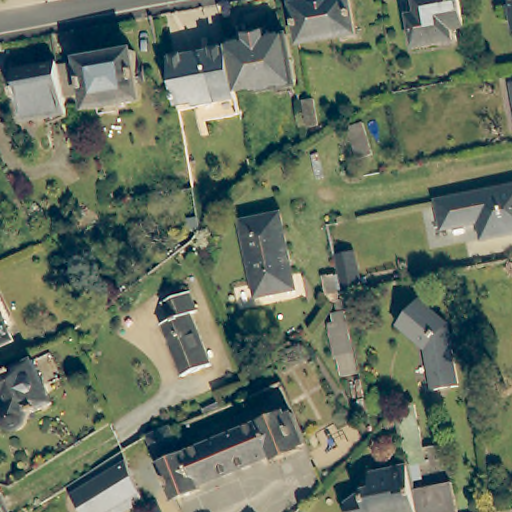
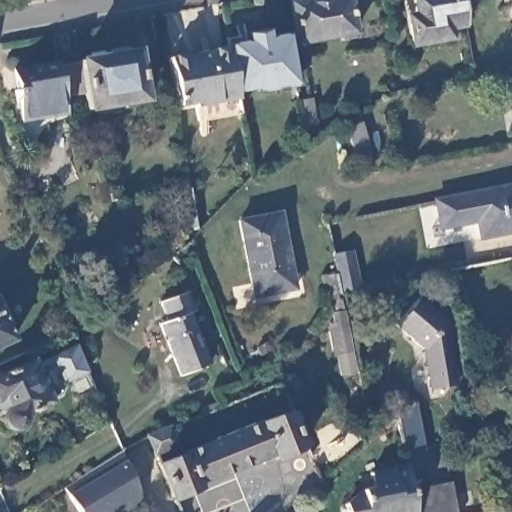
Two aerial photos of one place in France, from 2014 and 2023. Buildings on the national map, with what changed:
unchanged [(290,4),(310,0),(347,0),(353,34),(297,44),(290,4)]
unchanged [(451,25),(452,35),(411,42),(405,9),(414,7),(413,0),(460,0),(464,22),(451,25)]
unchanged [(511,5),(511,0),(512,0),(512,23),(509,6),(511,5)]
unchanged [(222,52),(221,44),(237,41),(237,34),(262,29),(264,36),(279,34),(288,84),(249,91),(248,89),(229,90),(222,52)]
unchanged [(57,66),(78,62),(78,60),(133,50),(142,99),(85,109),(82,92),(62,95),(57,66)]
unchanged [(191,121),(187,102),(171,105),(163,57),(203,50),(205,55),(222,52),(229,90),(233,114),(191,121)]
unchanged [(25,120),(23,108),(20,109),(17,89),(19,88),(17,72),(56,65),(57,66),(62,95),(65,114),(25,120)]
unchanged [(512,84),(512,96),(509,84),(512,84)]
unchanged [(302,99),(311,97),(316,125),(304,127),(299,100),(302,99)]
unchanged [(345,126),(359,121),(369,154),(355,158),(345,126)]
unchanged [(512,224),(472,232),(469,215),(432,222),(427,196),(512,179),(512,224)]
unchanged [(237,220),(277,212),(293,288),(253,297),(237,220)]
unchanged [(330,252),(349,249),(357,287),(339,291),(330,252)]
unchanged [(320,277),(330,275),(334,290),(323,293),(320,277)]
unchanged [(159,324),(168,320),(160,300),(187,289),(195,309),(189,310),(211,363),(179,375),(159,324)]
unchanged [(416,296),(447,321),(461,384),(429,391),(420,343),(390,323),(416,296)]
unchanged [(346,310),(363,373),(334,376),(319,315),(346,310)]
unchanged [(13,340),(0,346),(0,311),(13,340)]
unchanged [(32,354),(51,396),(28,407),(27,411),(25,415),(23,418),(20,420),(15,422),(12,423),(10,422),(7,421),(5,418),(2,415),(1,412),(1,409),(1,405),(0,405),(0,369),(32,354)]
unchanged [(425,463),(417,465),(408,466),(407,462),(403,463),(398,435),(397,435),(395,427),(394,419),(393,414),(412,402),(421,442),(421,445),(425,463)]
unchanged [(242,429),(290,410),(305,445),(273,457),(271,453),(198,481),(200,488),(173,498),(159,463),(242,429)]
unchanged [(167,427),(173,445),(155,452),(148,436),(167,427)]
unchanged [(128,512),(81,512),(64,485),(119,450),(142,505),(128,512)]
unchanged [(388,512),(346,512),(343,501),(360,488),(372,486),(370,471),(391,466),(391,465),(403,463),(407,462),(408,466),(413,487),(412,491),(411,492),(414,508),(414,511),(415,512),(394,512),(393,511),(388,512)]
unchanged [(414,508),(411,492),(412,491),(413,487),(449,480),(455,512),(415,512),(414,511),(414,508)]

